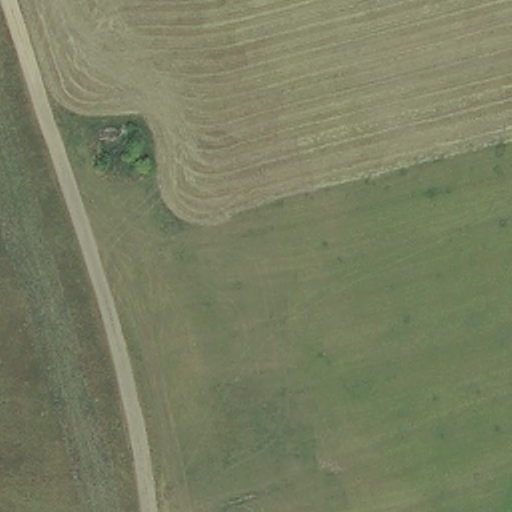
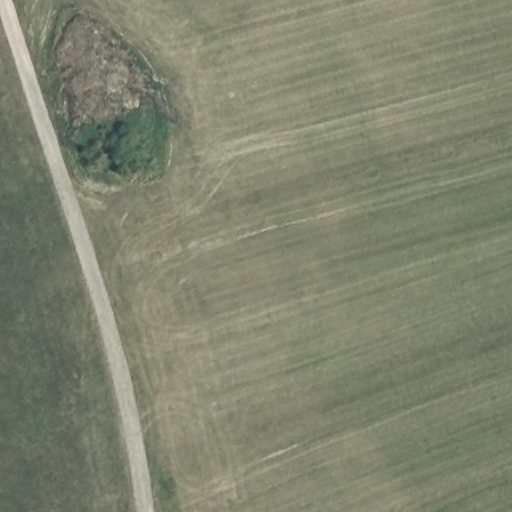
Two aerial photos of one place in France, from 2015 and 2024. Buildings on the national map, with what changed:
unchanged [(92,144),(135,135),(139,160),(97,166),(92,144)]

